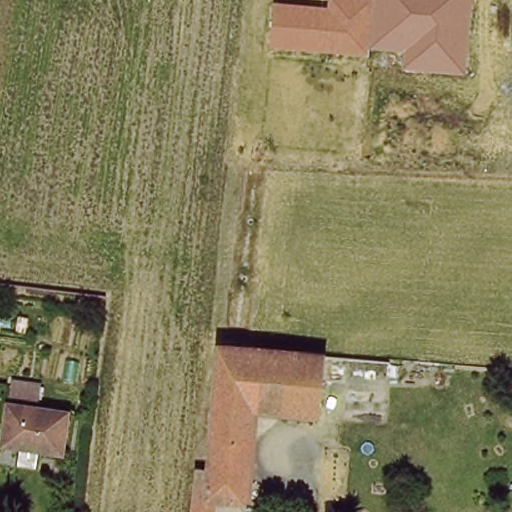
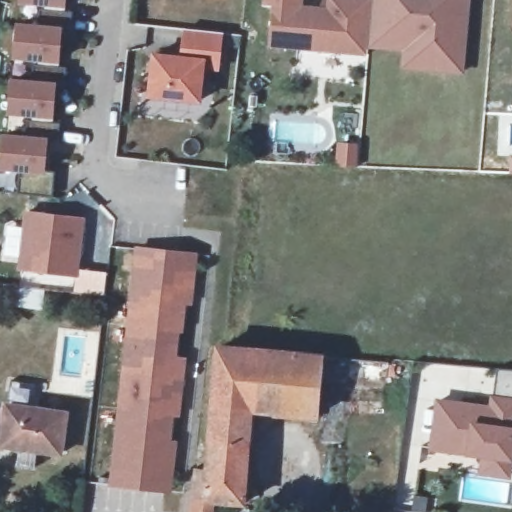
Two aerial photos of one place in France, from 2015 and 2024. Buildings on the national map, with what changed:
new [(0,171),(0,164),(2,133),(20,135),(21,117),(8,116),(11,79),(27,80),(28,61),(13,60),(16,22),(34,24),(36,5),(20,4),(20,0),(68,0),(68,7),(64,7),(63,26),(67,27),(62,64),(58,63),(57,84),(60,83),(56,119),(61,124),(60,140),(52,138),(50,171),(57,172),(54,197),(17,194),(15,173),(0,171)]
new [(305,4),(273,2),(273,7),(262,6),(263,0),(305,0),(305,4)]
unchanged [(330,6),(330,0),(472,0),(465,75),(405,71),(406,52),(370,49),(370,56),(269,49),(273,2),(330,6)]
new [(224,33),(222,72),(206,70),(202,104),(149,99),(154,53),(178,55),(185,29),(224,33)]
new [(340,164),(341,144),(361,145),(359,165),(340,164)]
new [(87,217),(81,279),(18,271),(24,211),(87,217)]
new [(197,253),(193,305),(189,305),(186,335),(183,334),(181,356),(189,357),(182,418),(177,418),(174,441),(181,441),(175,495),(110,488),(134,246),(197,253)]
unchanged [(326,355),(323,381),(320,418),(260,411),(211,406),(218,347),(326,355)]
new [(490,395),(497,396),(500,371),(512,372),(512,474),(511,481),(479,477),(484,458),(471,456),(429,450),(437,397),(489,405),(490,395)]
unchanged [(37,385),(33,410),(68,415),(61,456),(42,453),(40,467),(22,465),(24,450),(1,447),(7,406),(11,381),(37,385)]
unchanged [(211,406),(260,411),(246,507),(212,501),(211,512),(190,512),(195,470),(204,470),(211,406)]

